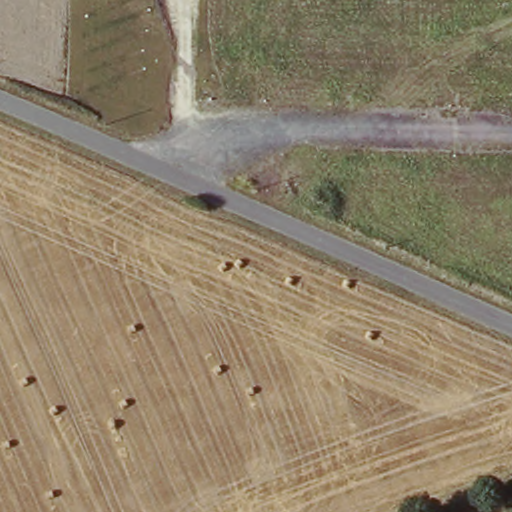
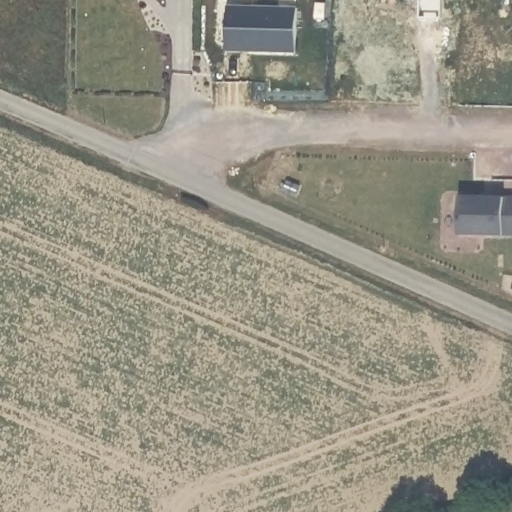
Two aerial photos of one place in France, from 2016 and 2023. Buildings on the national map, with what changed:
new [(297,52),(238,51),(228,51),(229,7),(239,7),(298,9),(297,52)]
new [(463,197),(512,199),(512,235),(462,234),(463,197)]

